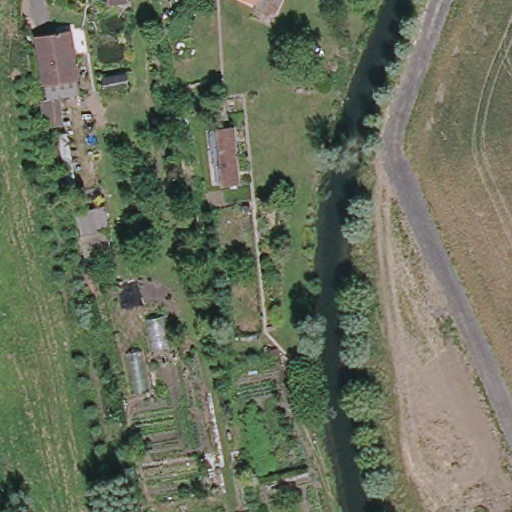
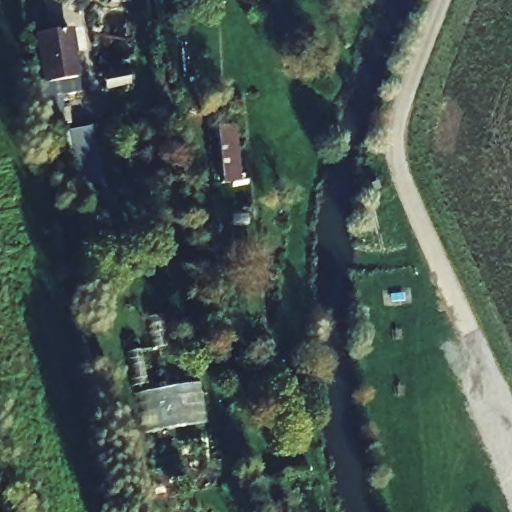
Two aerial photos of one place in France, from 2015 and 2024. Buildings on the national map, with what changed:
unchanged [(110,4),(110,0),(126,0),(126,3),(110,4)]
unchanged [(66,84),(68,125),(50,126),(45,86),(52,85),(43,36),(75,31),(83,81),(66,84)]
unchanged [(241,124),(247,178),(224,180),(218,126),(241,124)]
unchanged [(113,203),(117,226),(83,232),(79,209),(113,203)]
new [(147,412),(145,394),(196,385),(201,424),(158,430),(155,411),(147,412)]

